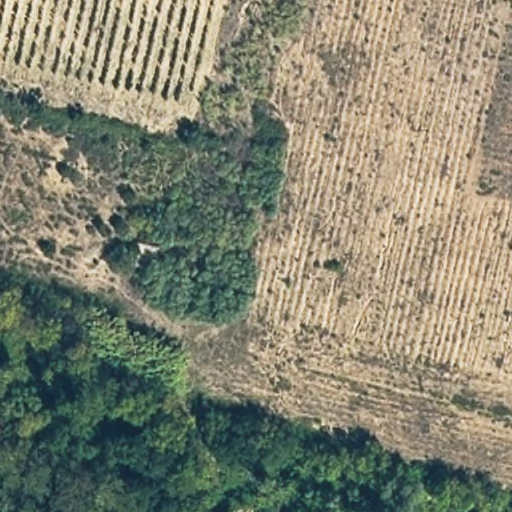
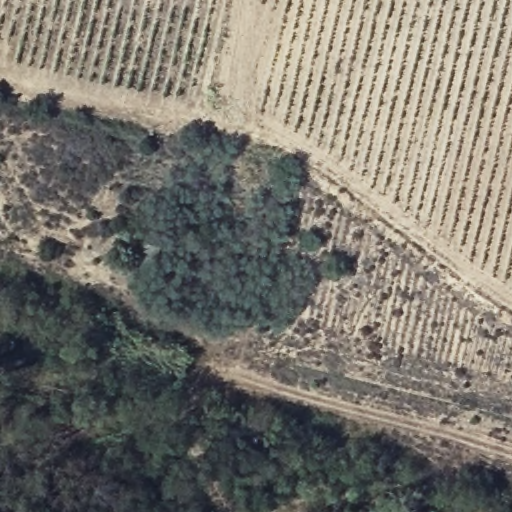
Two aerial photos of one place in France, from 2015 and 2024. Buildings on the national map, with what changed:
unchanged [(153,239),(144,262),(133,258),(136,239),(153,239)]

